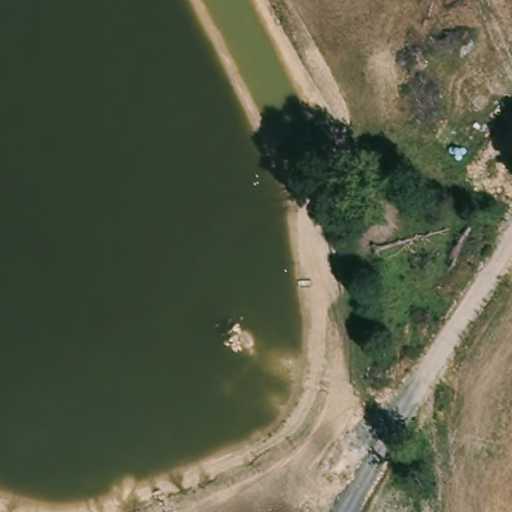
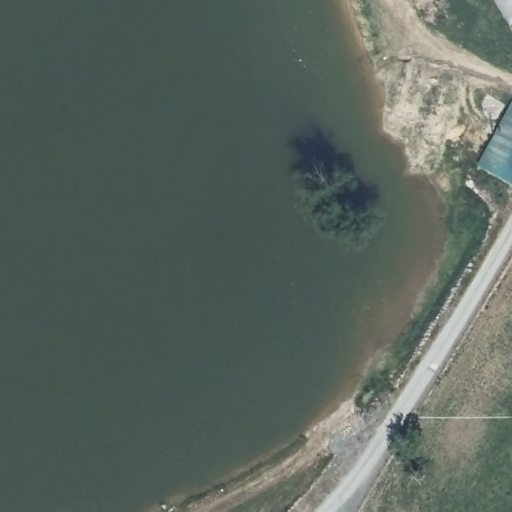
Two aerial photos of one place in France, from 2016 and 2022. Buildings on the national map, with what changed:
new [(512,0),(512,29),(494,0),(512,0)]
new [(512,99),(512,183),(481,166),(512,99)]

